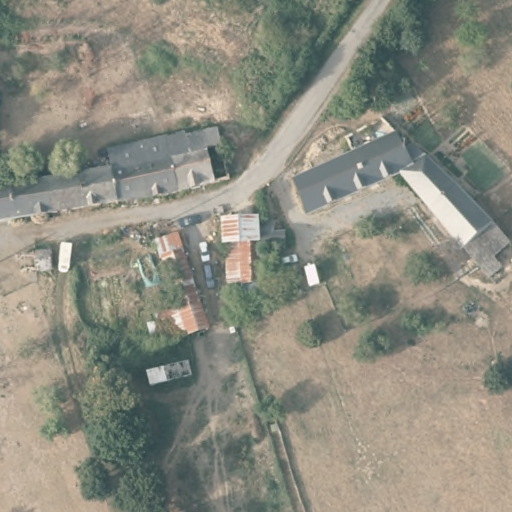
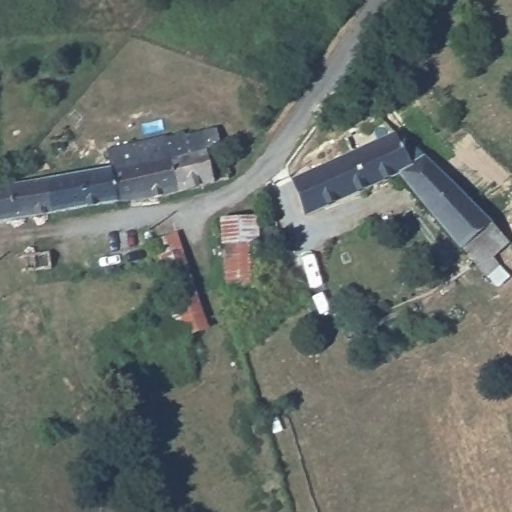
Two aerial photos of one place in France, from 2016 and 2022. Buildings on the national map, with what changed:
unchanged [(497,269),(487,276),(478,267),(468,256),(400,173),(367,188),(348,138),(384,119),(394,131),(398,139),(402,149),(408,148),(413,146),(505,248),(490,261),(497,269)]
unchanged [(11,187),(28,184),(46,180),(83,173),(108,169),(106,153),(180,134),(180,137),(213,130),(226,180),(225,182),(220,189),(115,205),(89,208),(52,214),(33,216),(14,219),(0,221),(0,188),(11,187)]
unchanged [(310,214),(298,183),(304,181),(298,165),(348,138),(367,188),(310,214)]
unchanged [(221,215),(262,215),(264,289),(227,293),(221,215)]
unchanged [(155,312),(174,305),(155,238),(180,231),(213,329),(164,344),(155,312)]

